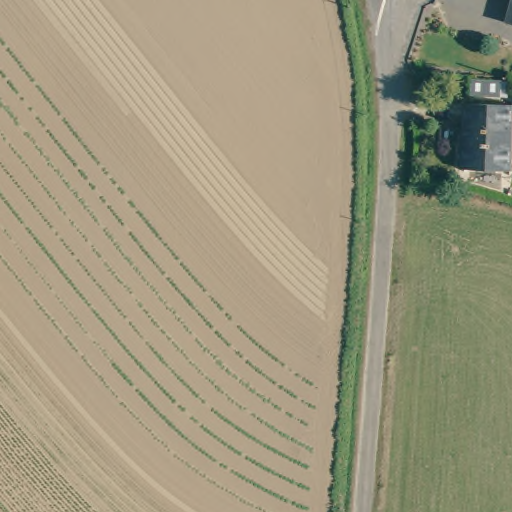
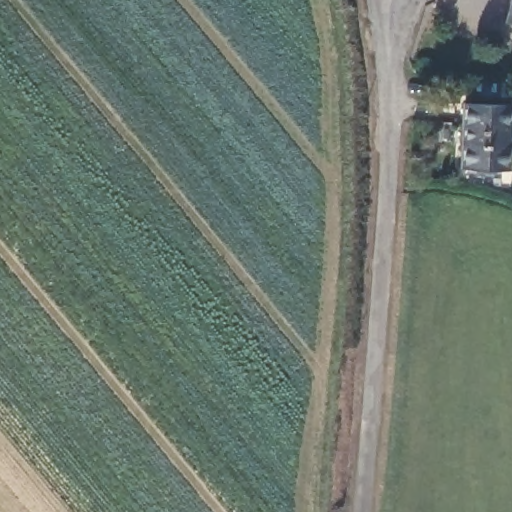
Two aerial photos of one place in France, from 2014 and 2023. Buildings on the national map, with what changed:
unchanged [(509,22),(512,7),(512,23),(509,22)]
unchanged [(469,164),(470,100),(512,102),(512,166),(469,164)]

